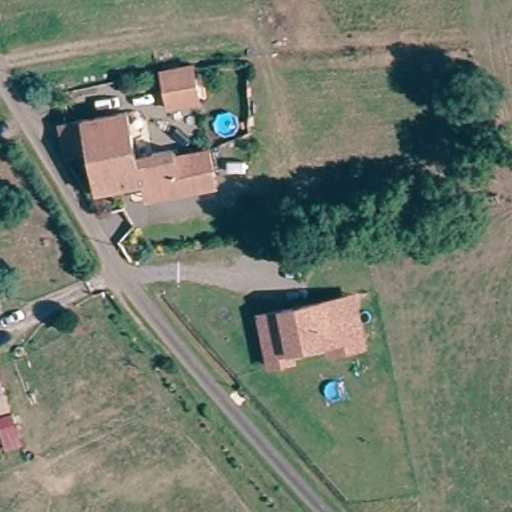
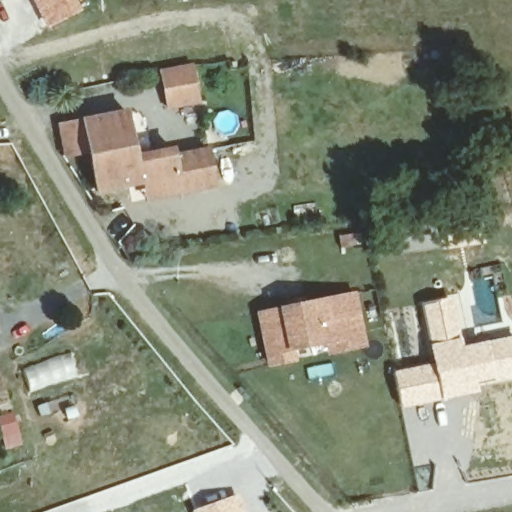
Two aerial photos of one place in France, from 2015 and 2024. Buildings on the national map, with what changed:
new [(82,11),(47,29),(33,0),(76,0),(82,11)]
unchanged [(197,100),(177,103),(165,106),(160,78),(159,69),(190,63),(197,100)]
unchanged [(179,144),(180,151),(214,144),(219,167),(177,174),(139,181),(97,188),(89,153),(66,158),(58,124),(125,110),(134,152),(154,148),(179,144)]
unchanged [(177,174),(219,167),(221,183),(142,196),(139,181),(177,174)]
new [(512,334),(512,380),(477,387),(479,392),(441,401),(432,361),(429,344),(421,304),(437,299),(461,292),(468,328),(460,330),(461,336),(463,344),(512,334)]
unchanged [(355,293),(365,343),(331,350),(328,340),(292,348),(294,357),(271,362),(261,313),(293,306),(302,304),(340,296),(355,293)]
new [(432,361),(441,401),(401,410),(392,371),(432,361)]
unchanged [(0,395),(2,401),(0,402),(0,395)]
new [(242,512),(192,512),(191,510),(236,494),(242,512)]

